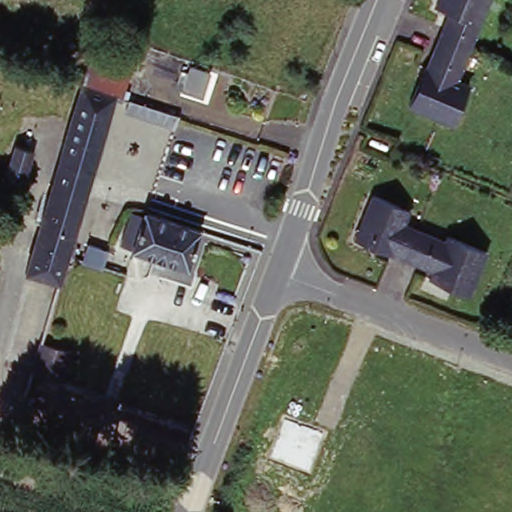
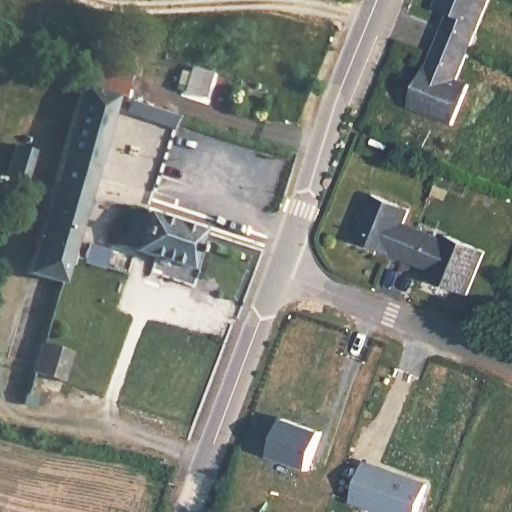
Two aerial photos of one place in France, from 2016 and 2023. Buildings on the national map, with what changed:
unchanged [(442,17),(449,0),(498,0),(465,81),(461,87),(473,94),(457,133),(415,115),(432,76),(436,78),(442,65),(453,37),(459,25),(442,17)]
unchanged [(85,92),(89,80),(95,59),(100,42),(140,56),(136,72),(130,95),(124,93),(105,154),(87,214),(74,255),(66,284),(31,272),(85,92)]
unchanged [(195,70),(215,77),(206,103),(186,96),(195,70)]
unchanged [(188,117),(184,131),(133,111),(139,99),(188,117)]
unchanged [(37,157),(25,195),(6,188),(17,152),(37,157)]
unchanged [(395,258),(385,255),(358,244),(377,199),(415,215),(408,229),(449,246),(451,242),(490,259),(471,303),(432,287),(436,277),(421,271),(395,258)]
unchanged [(190,278),(135,258),(138,247),(127,244),(135,221),(146,225),(148,220),(203,240),(190,278)]
unchanged [(90,242),(111,249),(107,263),(85,258),(90,242)]
unchanged [(77,358),(68,387),(37,376),(46,348),(77,358)]
new [(310,473),(266,457),(282,417),(324,432),(310,473)]
new [(400,475),(428,485),(419,512),(382,512),(351,501),(365,462),(390,471),(400,475)]

